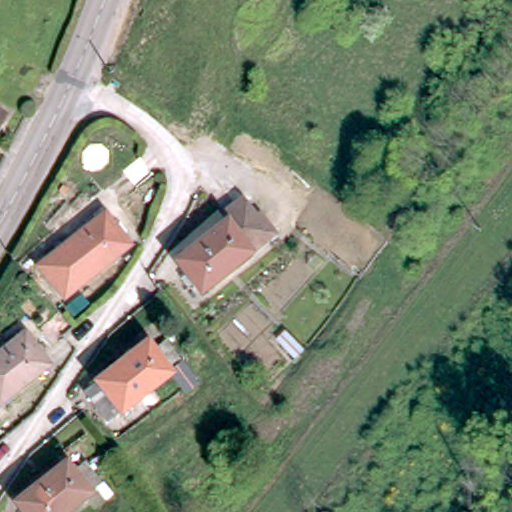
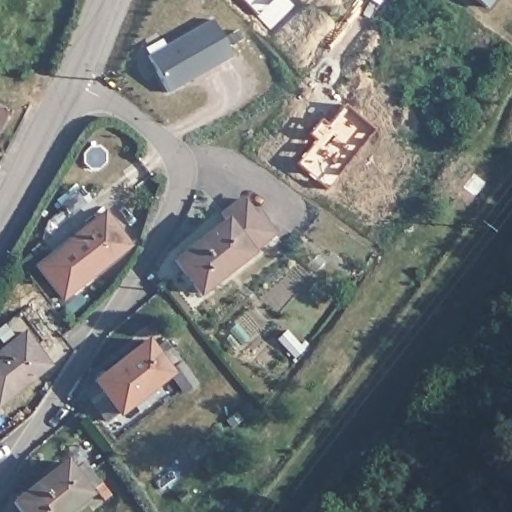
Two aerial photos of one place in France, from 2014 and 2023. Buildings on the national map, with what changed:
new [(476,0),(494,0),(488,9),(476,0)]
new [(233,56),(169,92),(147,55),(212,19),(233,56)]
unchanged [(0,126),(0,114),(5,117),(0,126)]
unchanged [(182,279),(174,268),(223,228),(218,222),(240,204),(253,221),(259,216),(276,237),(262,248),(251,257),(200,299),(190,287),(177,297),(170,288),(182,279)]
unchanged [(53,256),(105,214),(129,245),(78,287),(62,301),(46,282),(63,268),(53,256)]
unchanged [(286,328),(305,346),(296,355),(277,337),(286,328)]
unchanged [(24,335),(47,366),(0,403),(0,354),(24,335)]
unchanged [(140,360),(152,350),(163,361),(171,370),(170,372),(181,385),(188,392),(175,402),(170,395),(158,381),(108,422),(100,413),(95,417),(91,420),(73,398),(82,391),(132,350),(140,360)]
unchanged [(20,510),(12,499),(63,457),(71,467),(80,478),(89,489),(101,479),(104,476),(115,488),(93,507),(82,494),(62,510),(60,512),(18,512),(20,510)]

